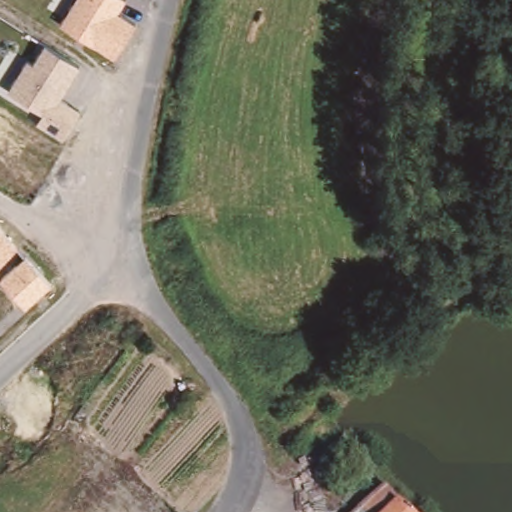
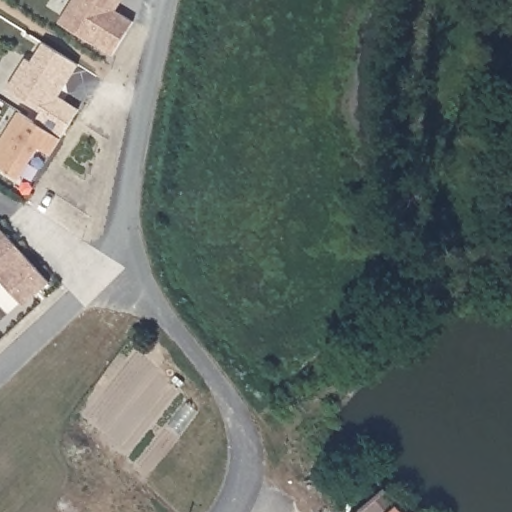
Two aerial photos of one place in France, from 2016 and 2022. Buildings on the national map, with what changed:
unchanged [(73,0),(123,0),(117,12),(135,22),(112,57),(60,23),(73,0)]
unchanged [(32,61),(43,44),(78,64),(60,95),(80,109),(63,138),(35,122),(41,112),(5,90),(25,57),(32,61)]
new [(63,138),(50,157),(39,149),(19,180),(0,167),(0,139),(17,112),(35,122),(63,138)]
unchanged [(24,307),(0,279),(0,229),(50,283),(24,307)]
unchanged [(384,492),(397,508),(402,512),(369,512),(366,509),(384,492)]

